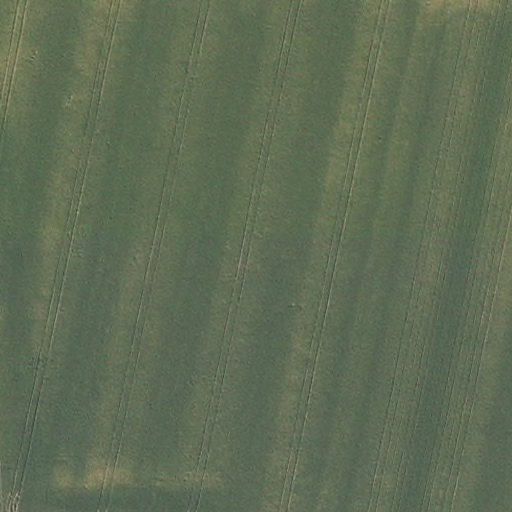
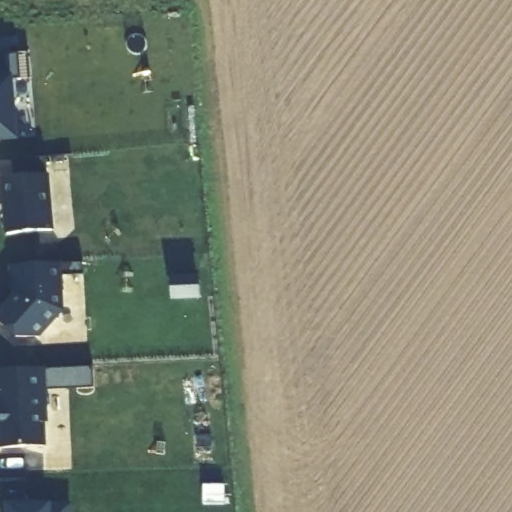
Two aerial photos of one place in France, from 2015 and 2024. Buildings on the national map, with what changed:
new [(20,79),(13,81),(19,142),(0,142),(0,56),(18,55),(20,79)]
new [(49,230),(5,234),(3,212),(7,211),(6,200),(2,200),(0,178),(11,177),(10,160),(43,157),(49,230)]
new [(36,336),(15,337),(0,324),(0,309),(14,293),(14,289),(10,289),(8,265),(57,262),(60,309),(36,336)]
new [(43,389),(44,422),(41,422),(43,446),(0,447),(0,370),(40,367),(41,389),(43,389)]
new [(43,389),(41,389),(40,367),(93,367),(94,387),(43,389)]
new [(0,493),(25,493),(25,505),(67,505),(67,512),(0,512),(0,493)]

